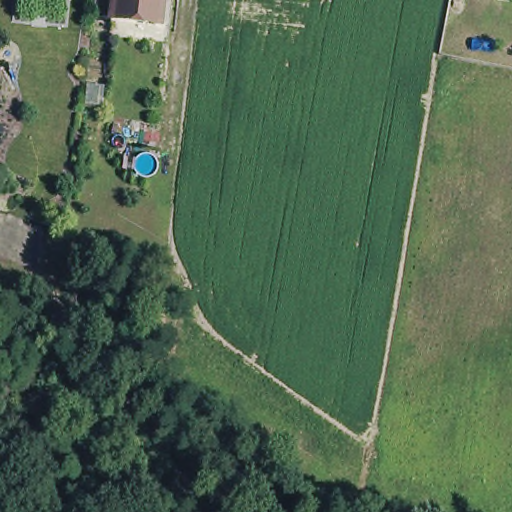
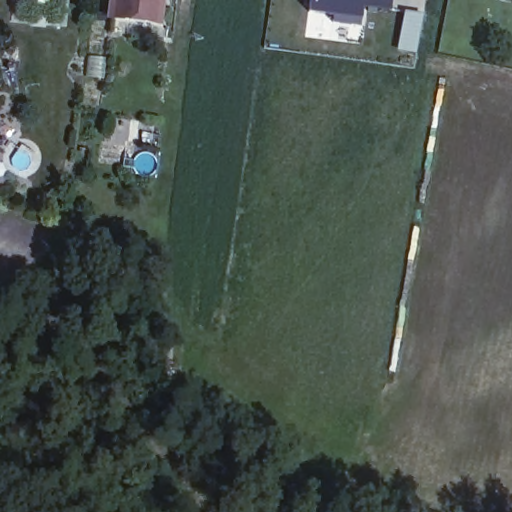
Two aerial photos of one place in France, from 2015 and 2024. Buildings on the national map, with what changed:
unchanged [(152,17),(115,13),(116,0),(161,0),(161,1),(159,19),(152,17)]
new [(363,9),(360,29),(330,26),(332,17),(310,14),(312,0),(392,0),(391,11),(363,9)]

